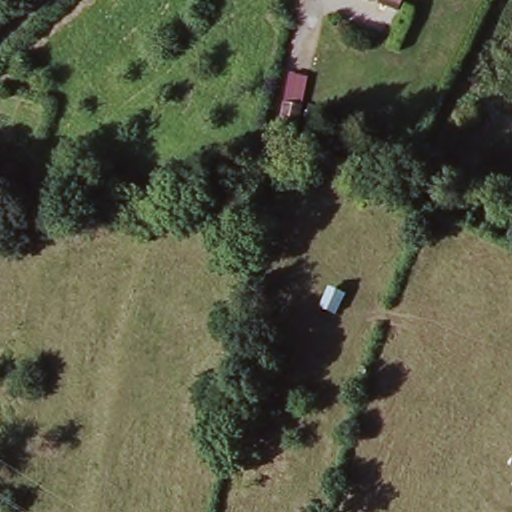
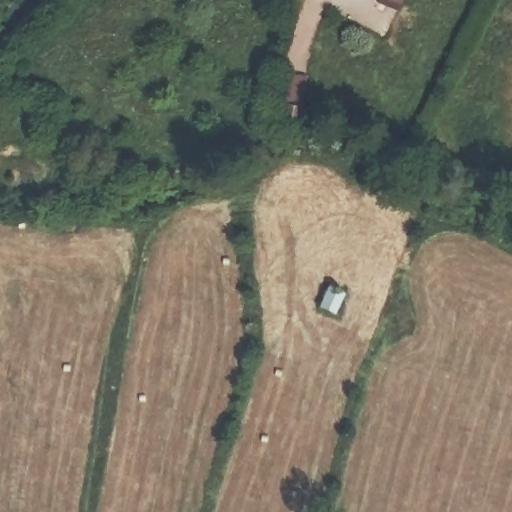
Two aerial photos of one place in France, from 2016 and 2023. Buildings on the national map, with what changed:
unchanged [(406,8),(379,0),(409,0),(406,8)]
unchanged [(310,85),(300,124),(281,119),(289,79),(310,85)]
unchanged [(348,297),(339,321),(324,316),(333,292),(348,297)]

